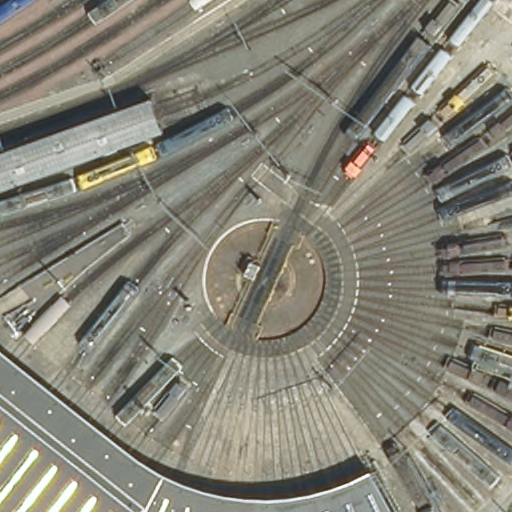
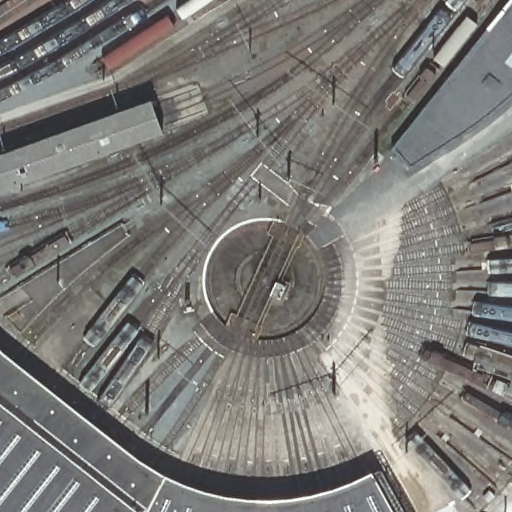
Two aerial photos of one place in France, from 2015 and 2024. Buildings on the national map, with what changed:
new [(482,120),(411,167),(392,148),(508,0),(512,0),(512,94),(482,120)]
demolished [(507,56),(512,50),(512,59),(507,56)]
unchanged [(161,132),(0,189),(0,149),(149,99),(161,132)]
unchanged [(400,512),(0,512),(0,350),(2,352),(5,355),(8,357),(11,360),(14,362),(15,363),(16,364),(17,365),(19,366),(20,367),(21,368),(22,368),(23,369),(110,266),(130,283),(44,386),(53,393),(72,409),(92,425),(95,426),(97,428),(99,430),(101,431),(103,433),(105,435),(107,436),(110,438),(112,440),(114,441),(116,443),(118,445),(120,447),(122,449),(125,450),(127,452),(129,454),(131,455),(134,458),(137,460),(140,462),(142,464),(146,466),(149,468),(152,470),(155,472),(157,474),(160,475),(162,476),(164,477),(167,479),(169,480),(171,481),(173,482),(176,483),(178,485),(180,485),(182,486),(185,487),(187,488),(189,490),(191,490),(194,491),(196,492),(198,492),(200,493),(202,494),(205,495),(207,495),(210,496),(212,497),(214,497),(217,498),(219,498),(221,499),(224,500),(226,500),(229,501),(231,501),(234,501),(236,502),(239,502),(241,503),(244,503),(246,503),(249,503),(251,504),(253,504),(256,504),(258,505),(261,505),(263,505),(266,505),(268,505),(271,505),(273,505),(276,505),(278,505),(281,505),(283,505),(286,505),(287,504),(290,504),(292,504),(295,503),(297,503),(300,503),(302,503),(305,502),(307,502),(310,501),(312,501),(315,500),(317,500),(319,500),(322,499),(324,498),(326,498),(328,497),(331,496),(333,496),(336,495),(338,495),(341,494),(343,493),(345,492),(347,491),(350,490),(352,490),(355,489),(357,488),(359,487),(361,486),(363,485),(366,484),(368,483),(370,482),(372,481),(375,480),(377,478),(379,477),(381,476),(400,512)]

